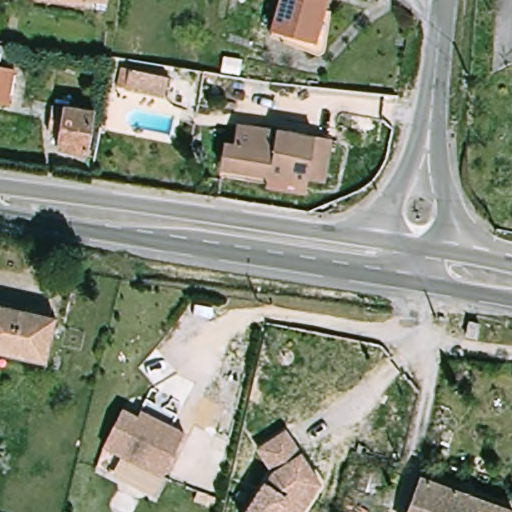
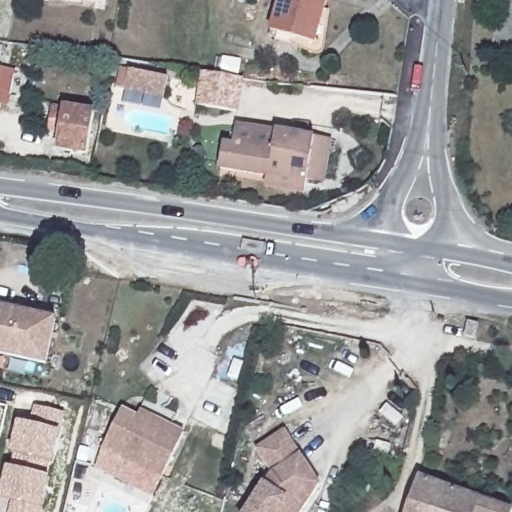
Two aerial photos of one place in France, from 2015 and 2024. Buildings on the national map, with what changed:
unchanged [(106,5),(68,0),(106,0),(106,5)]
unchanged [(318,45),(274,35),(283,0),(329,0),(318,45)]
new [(203,70),(221,74),(224,56),(243,60),(238,77),(245,79),(239,112),(198,105),(203,70)]
unchanged [(168,72),(165,95),(128,90),(131,67),(168,72)]
unchanged [(8,104),(0,103),(0,70),(14,72),(8,104)]
unchanged [(56,149),(58,135),(48,133),(51,107),(93,113),(88,155),(56,149)]
unchanged [(256,186),(257,177),(212,170),(216,143),(225,145),(227,126),(321,140),(315,182),(296,179),(296,182),(294,192),(256,186)]
unchanged [(48,363),(0,355),(0,309),(56,320),(48,363)]
unchanged [(475,330),(472,340),(461,337),(463,327),(465,321),(476,324),(475,330)]
unchanged [(116,472),(125,453),(102,442),(121,403),(138,411),(141,405),(157,413),(185,428),(163,472),(154,491),(116,472)]
new [(0,497),(0,493),(7,466),(12,467),(16,453),(11,452),(19,421),(30,423),(35,405),(67,412),(62,433),(60,432),(43,507),(44,507),(42,512),(8,512),(13,499),(0,497)]
unchanged [(282,495),(270,512),(239,512),(243,507),(260,480),(270,467),(257,444),(257,443),(258,443),(288,427),(310,468),(293,477),(298,486),(282,495)]
unchanged [(381,490),(368,487),(367,491),(354,488),(359,467),(385,473),(381,490)]
unchanged [(298,512),(270,512),(282,495),(298,486),(293,477),(310,468),(318,483),(298,512)]
unchanged [(422,478),(512,511),(512,512),(446,512),(414,500),(422,478)]
unchanged [(409,512),(414,500),(446,512),(409,512)]

